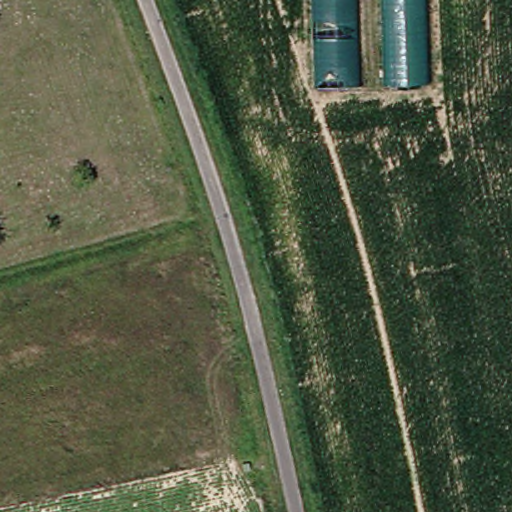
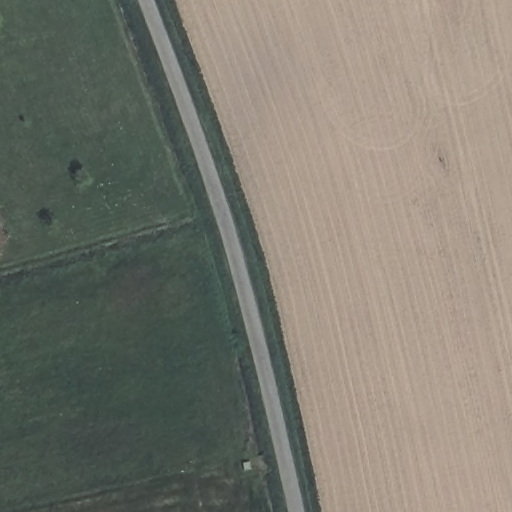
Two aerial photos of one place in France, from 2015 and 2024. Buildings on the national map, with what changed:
demolished [(348,83),(302,84),(299,0),(345,0),(348,83)]
demolished [(427,83),(387,83),(384,0),(425,0),(427,83)]

